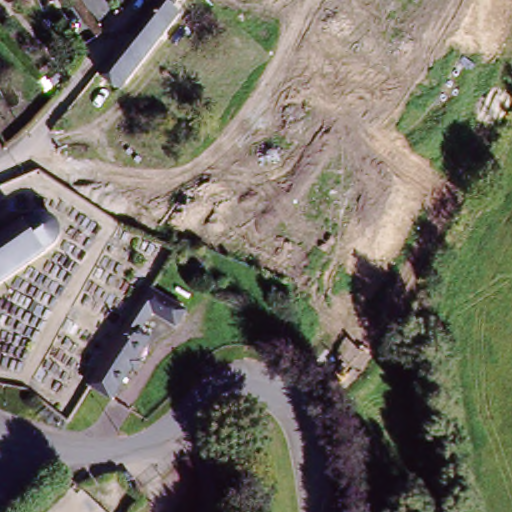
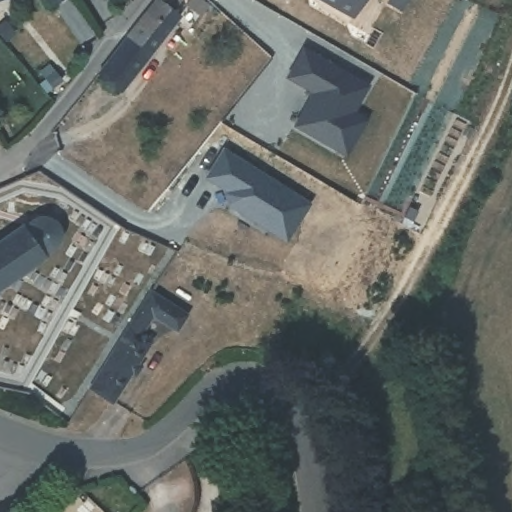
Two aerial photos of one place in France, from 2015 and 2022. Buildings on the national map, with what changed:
unchanged [(0,0),(5,0),(0,2),(0,0)]
unchanged [(95,80),(103,69),(159,0),(192,0),(180,13),(186,19),(126,90),(118,100),(95,80)]
new [(354,18),(322,0),(364,0),(354,18)]
new [(316,89),(291,72),(310,45),(370,85),(330,144),(295,120),(306,103),(311,97),(316,89)]
demolished [(370,93),(315,65),(326,46),(380,74),(370,93)]
new [(343,152),(330,144),(353,110),(365,118),(343,152)]
demolished [(87,150),(75,173),(58,164),(54,162),(37,154),(46,137),(61,144),(64,145),(67,139),(87,150)]
new [(310,201),(286,238),(227,202),(226,191),(205,176),(222,147),(310,201)]
demolished [(137,207),(148,185),(196,208),(184,230),(137,207)]
unchanged [(52,218),(60,219),(67,225),(68,236),(49,249),(54,256),(0,293),(0,241),(27,222),(34,230),(52,218)]
unchanged [(172,284),(163,299),(171,304),(161,320),(151,314),(144,327),(129,319),(156,275),(172,284)]
unchanged [(71,409),(86,387),(94,374),(129,319),(144,327),(154,333),(122,386),(110,380),(108,383),(100,396),(86,419),(71,409)]

